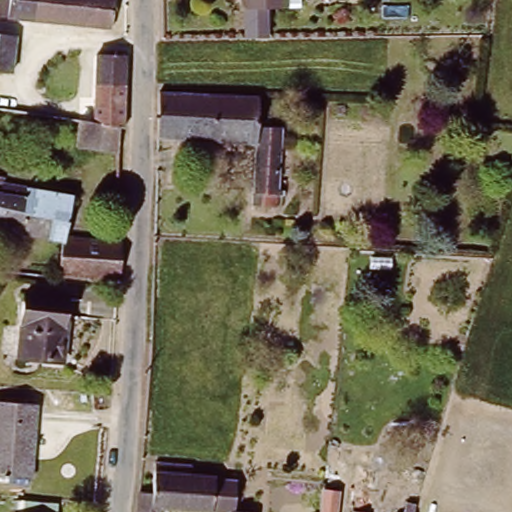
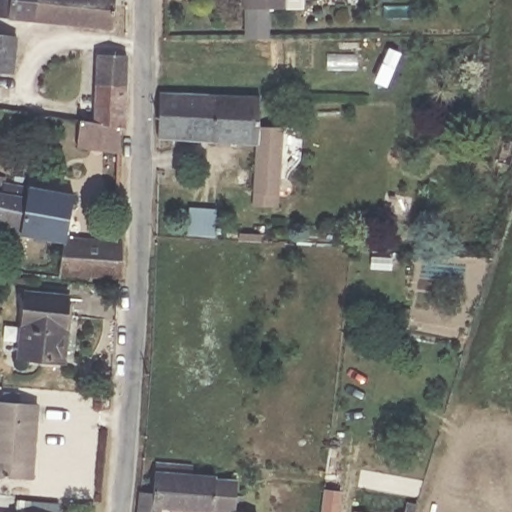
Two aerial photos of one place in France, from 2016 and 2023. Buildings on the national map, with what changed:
unchanged [(110,23),(8,15),(7,23),(0,22),(2,0),(115,0),(110,23)]
unchanged [(243,10),(243,0),(282,0),(283,6),(243,10)]
unchanged [(11,80),(1,78),(2,72),(0,72),(0,31),(18,33),(11,80)]
unchanged [(120,120),(96,116),(94,46),(125,45),(128,122),(120,120)]
unchanged [(262,94),(261,118),(272,119),(271,127),(285,128),(285,202),(258,202),(257,144),(161,141),(163,92),(262,94)]
unchanged [(120,120),(117,155),(71,152),(78,113),(96,116),(120,120)]
unchanged [(2,189),(22,193),(25,183),(72,192),(68,239),(122,243),(125,282),(65,281),(65,241),(0,228),(0,175),(5,175),(2,189)]
unchanged [(25,291),(67,296),(61,357),(18,353),(25,291)]
unchanged [(43,405),(37,479),(0,476),(0,414),(1,402),(43,405)]
unchanged [(193,473),(217,474),(217,480),(239,480),(236,510),(170,504),(168,512),(138,512),(140,487),(155,488),(157,463),(194,466),(193,473)]
unchanged [(339,489),(336,512),(321,512),(323,487),(339,489)]
unchanged [(407,497),(407,505),(406,512),(398,512),(400,496),(407,497)]
unchanged [(43,512),(11,512),(11,509),(43,512)]
unchanged [(258,512),(236,512),(236,510),(258,512)]

